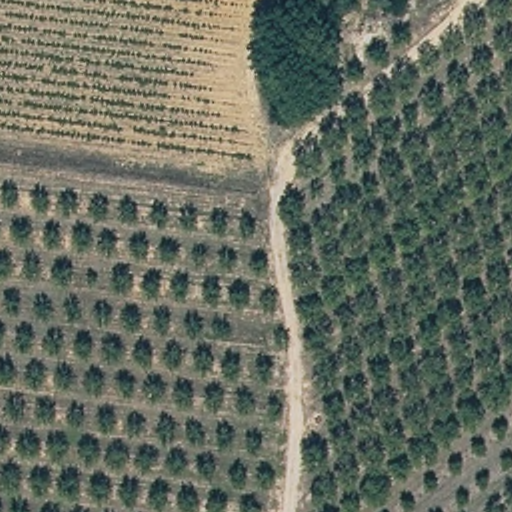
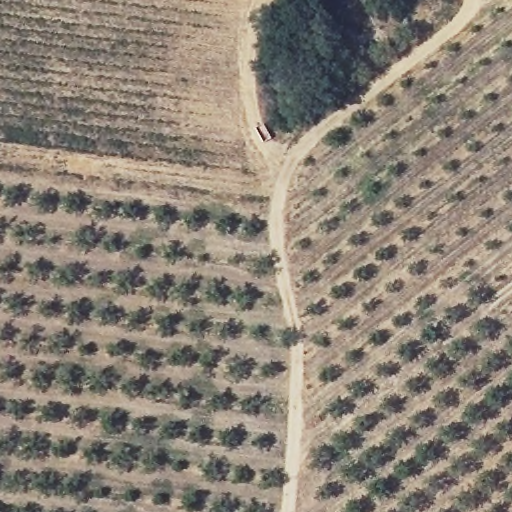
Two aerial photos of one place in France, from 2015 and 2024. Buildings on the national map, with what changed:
[]

